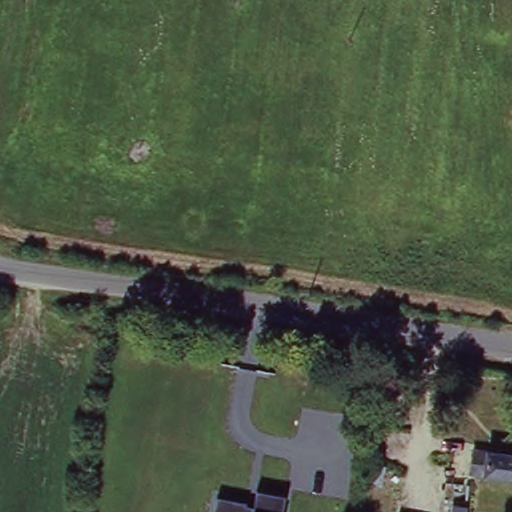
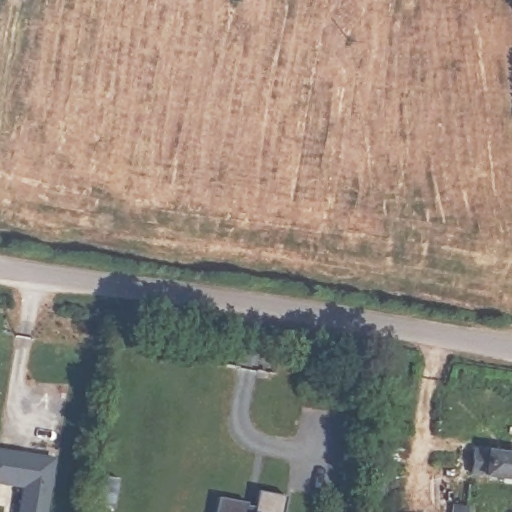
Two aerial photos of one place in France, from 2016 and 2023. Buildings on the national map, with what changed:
new [(45,512),(17,512),(21,484),(0,482),(0,444),(55,449),(45,512)]
unchanged [(475,445),(512,449),(512,475),(472,470),(475,445)]
unchanged [(214,512),(217,497),(252,505),(255,491),(285,497),(282,512),(214,512)]
unchanged [(466,505),(466,512),(450,512),(451,503),(466,505)]
new [(398,512),(395,512),(395,511),(398,512)]

